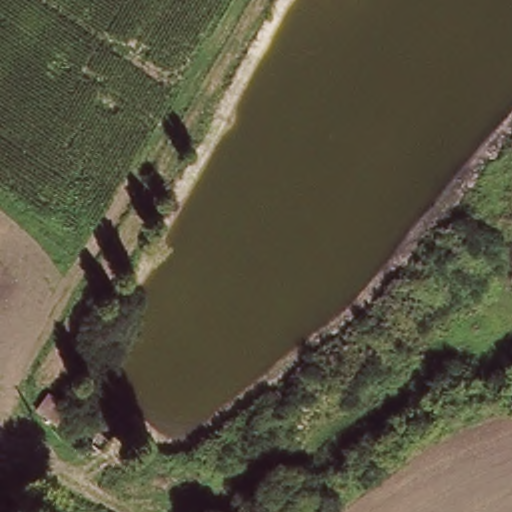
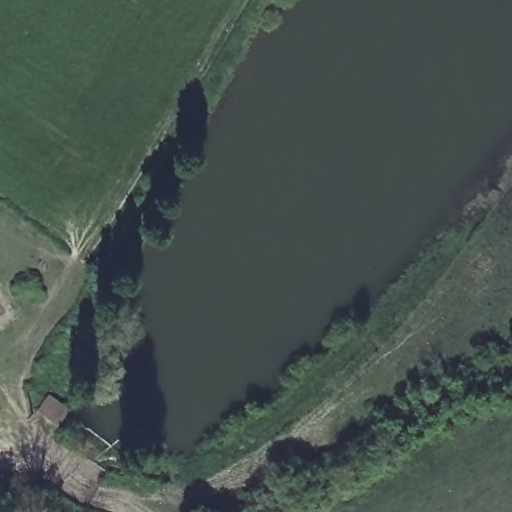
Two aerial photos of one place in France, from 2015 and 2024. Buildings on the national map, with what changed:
unchanged [(40,402),(52,384),(74,400),(61,417),(40,402)]

